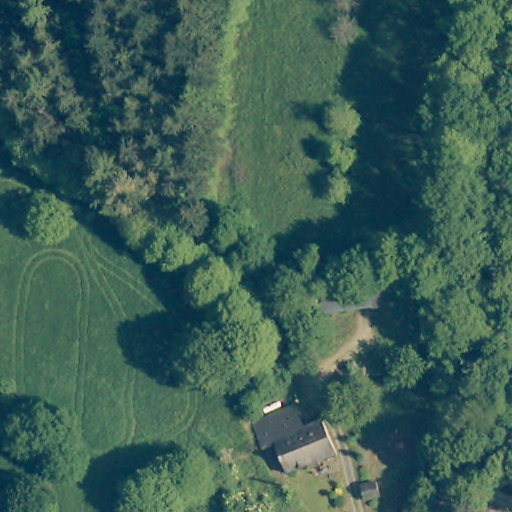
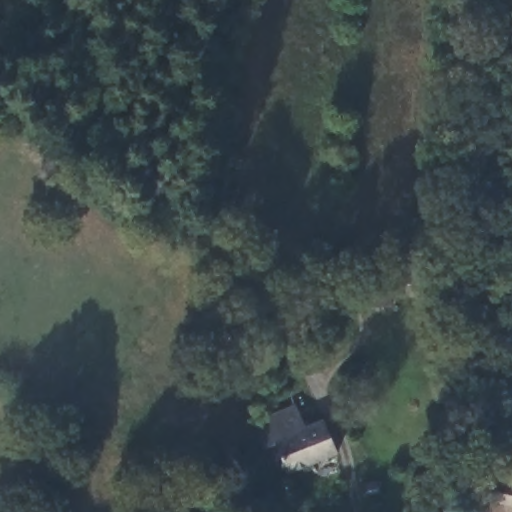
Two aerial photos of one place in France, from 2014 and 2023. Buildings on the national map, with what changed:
unchanged [(368,306),(321,311),(317,282),(365,276),(368,306)]
unchanged [(262,446),(253,420),(292,406),(302,430),(276,440),(262,446)]
unchanged [(302,430),(323,421),(337,453),(287,470),(276,440),(302,430)]
unchanged [(480,475),(492,467),(512,472),(512,506),(473,496),(480,475)]
unchanged [(379,496),(363,499),(361,484),(366,483),(377,481),(379,496)]

